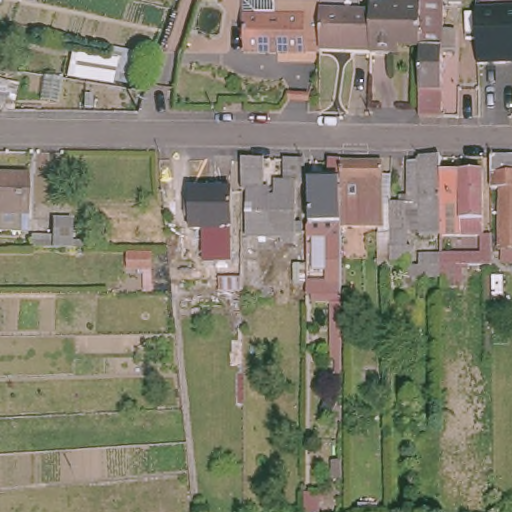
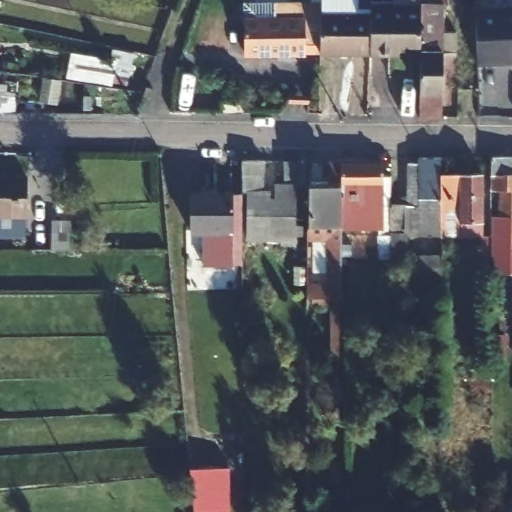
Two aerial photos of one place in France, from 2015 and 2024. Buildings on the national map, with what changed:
unchanged [(459,7),(429,7),(429,10),(441,10),(441,34),(454,34),(453,55),(441,55),(440,121),(417,122),(417,50),(418,13),(418,0),(459,0),(459,7)]
unchanged [(242,29),(242,11),(270,12),(317,13),(317,16),(315,56),(315,62),(240,61),(242,29)]
unchanged [(385,57),(366,56),(367,18),(367,11),(418,13),(417,50),(395,49),(395,58),(385,57)]
unchanged [(317,16),(367,18),(366,56),(366,58),(315,56),(317,16)]
unchanged [(512,16),(512,63),(507,63),(506,68),(479,69),(477,17),(512,16)]
unchanged [(73,46),(133,55),(130,87),(66,78),(73,46)]
unchanged [(512,87),(512,118),(478,118),(479,86),(512,87)]
unchanged [(411,202),(410,161),(424,161),(424,156),(442,156),(442,170),(442,202),(411,202)]
unchanged [(493,234),(493,157),(512,157),(512,252),(503,252),(503,234),(493,234)]
unchanged [(239,281),(240,161),(261,161),(261,190),(273,190),(273,184),(284,184),(285,180),(285,161),(305,161),(305,181),(297,181),(297,222),(303,222),(303,233),(262,233),(262,281),(239,281)]
unchanged [(310,237),(311,183),(312,177),(324,177),(324,161),(340,161),(382,162),(382,175),(389,175),(389,202),(389,225),(338,224),(338,237),(338,270),(312,270),(310,237)]
unchanged [(485,170),(485,235),(460,235),(460,223),(442,223),(442,202),(442,170),(485,170)]
unchanged [(25,173),(24,205),(22,227),(0,227),(0,172),(25,173)]
unchanged [(207,231),(187,231),(187,194),(234,193),(234,257),(207,257),(207,231)]
unchanged [(411,202),(442,202),(442,223),(442,241),(410,241),(410,268),(390,268),(389,225),(389,202),(411,202)]
unchanged [(52,250),(53,220),(74,221),(73,250),(52,250)]
unchanged [(479,255),(479,239),(492,239),(492,267),(463,270),(463,291),(441,291),(440,276),(422,275),(421,255),(479,255)]
demolished [(213,268),(234,268),(235,292),(213,292),(213,268)]
unchanged [(270,281),(270,274),(286,275),(286,282),(270,281)]
new [(228,466),(231,512),(193,512),(191,468),(228,466)]

